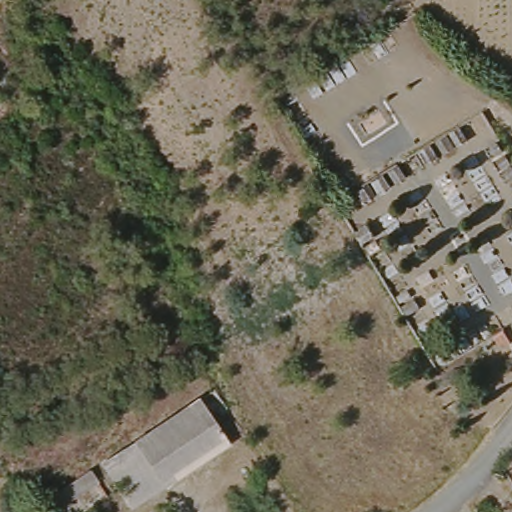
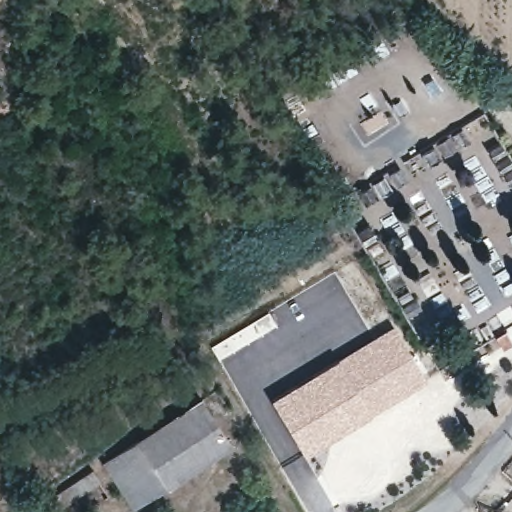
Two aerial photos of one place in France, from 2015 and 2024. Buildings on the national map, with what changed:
new [(429,382),(370,417),(367,413),(302,452),(272,401),(339,362),(337,359),(394,325),(429,382)]
unchanged [(495,333),(508,326),(512,333),(512,344),(504,349),(495,333)]
unchanged [(228,444),(165,477),(142,432),(204,399),(228,444)]
unchanged [(132,494),(110,450),(142,432),(165,477),(132,494)]

